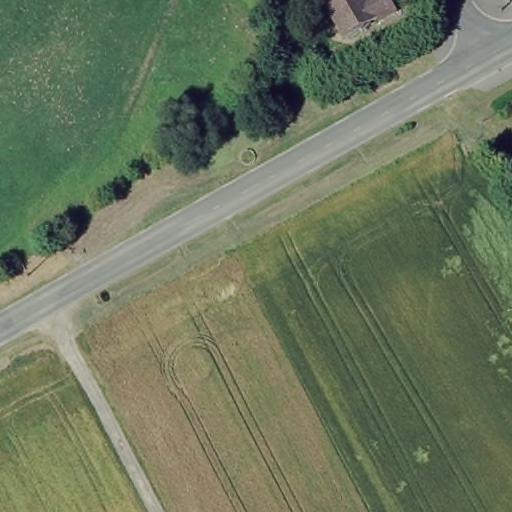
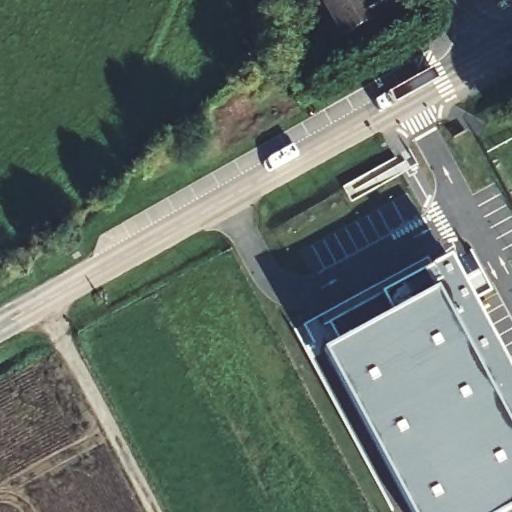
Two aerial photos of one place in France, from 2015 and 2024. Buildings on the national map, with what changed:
unchanged [(379,20),(376,16),(343,36),(321,0),(390,0),(396,9),(379,20)]
new [(296,336),(464,247),(512,346),(512,512),(391,512),(296,336)]

